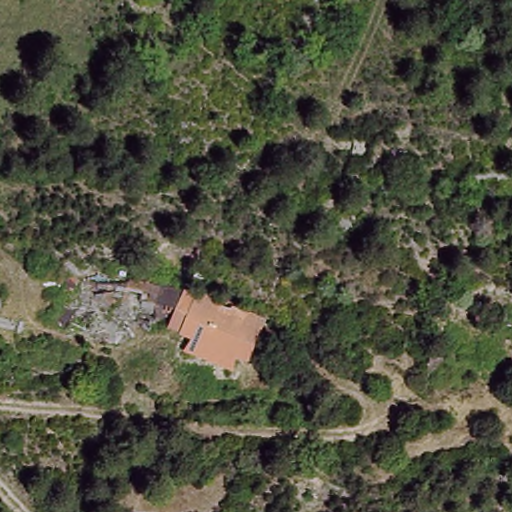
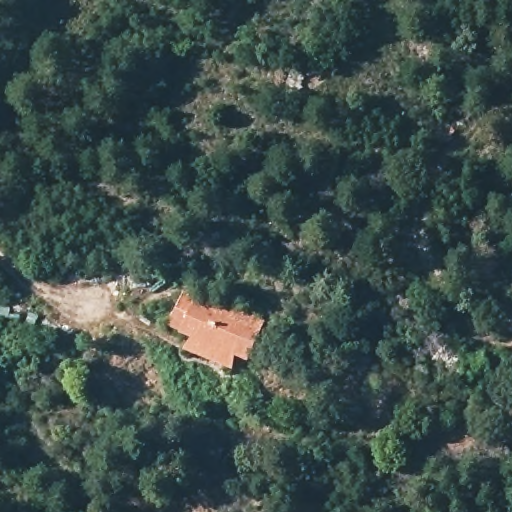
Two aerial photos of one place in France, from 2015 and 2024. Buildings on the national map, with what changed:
unchanged [(264,325),(249,363),(241,360),(234,374),(189,354),(194,341),(168,329),(181,291),(264,325)]

